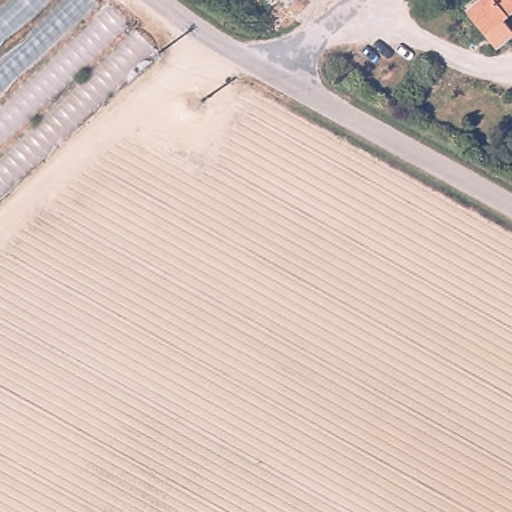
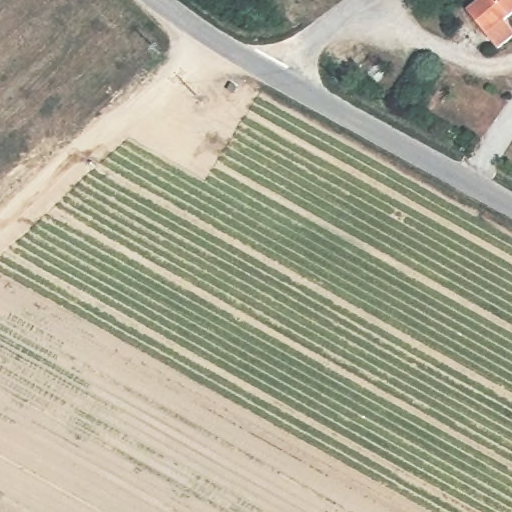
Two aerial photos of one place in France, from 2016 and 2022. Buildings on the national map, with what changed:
demolished [(100,0),(104,5),(109,1),(156,46),(0,193),(0,9),(10,0),(100,0)]
demolished [(291,0),(288,3),(286,0),(291,0)]
unchanged [(478,0),(512,0),(512,10),(510,11),(512,13),(512,33),(504,40),(493,26),(474,3),(478,0)]

